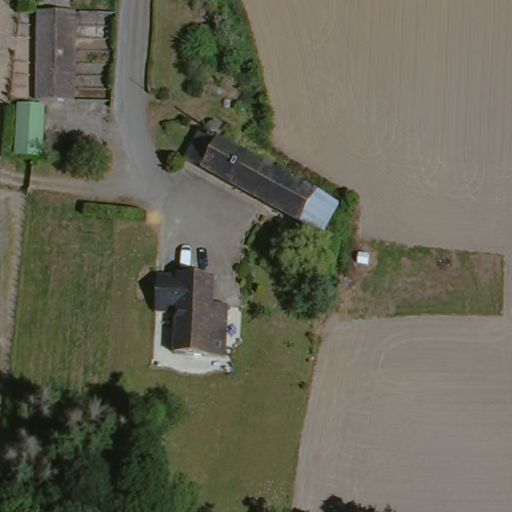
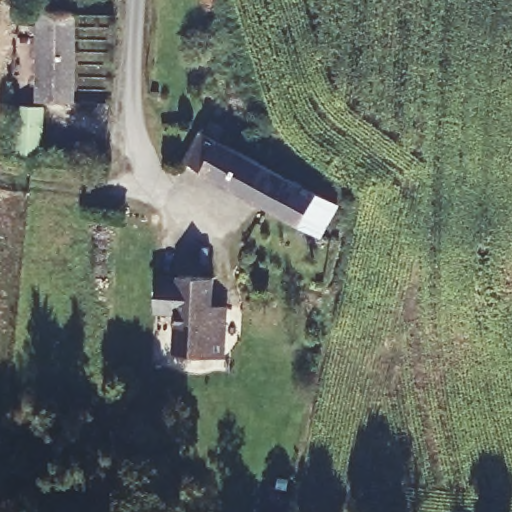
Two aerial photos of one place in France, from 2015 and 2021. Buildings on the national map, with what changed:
unchanged [(16,101),(34,101),(34,96),(39,8),(73,10),(70,98),(44,97),(41,155),(31,154),(14,153),(16,101)]
unchanged [(329,234),(192,157),(210,125),(216,129),(215,125),(215,121),(219,116),(225,116),(228,117),(233,120),(233,124),(233,129),(226,134),(346,200),(332,229),(329,234)]
unchanged [(217,300),(230,301),(229,354),(177,353),(178,311),(156,311),(158,273),(179,274),(179,271),(218,272),(217,300)]

